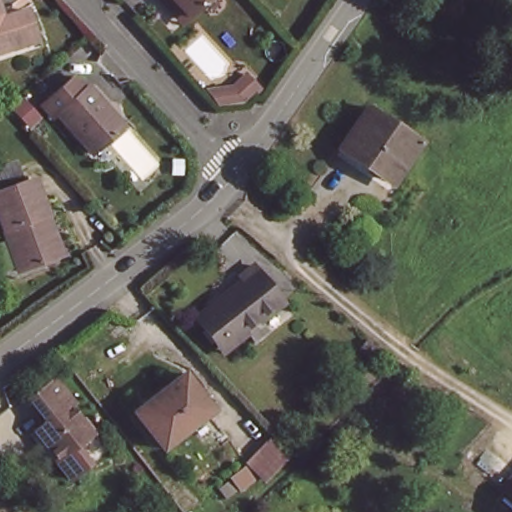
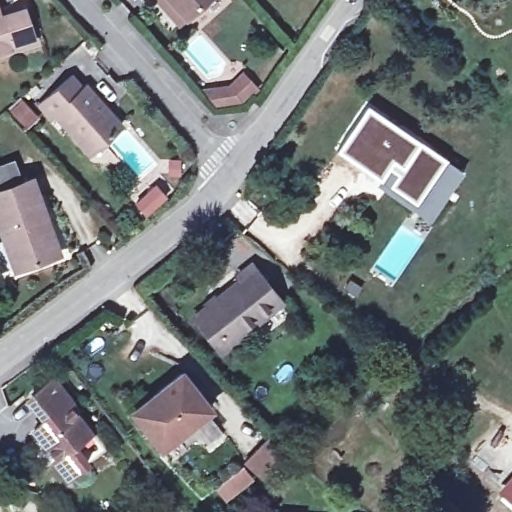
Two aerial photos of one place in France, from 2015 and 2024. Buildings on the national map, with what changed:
unchanged [(28,2),(40,39),(0,52),(0,0),(3,0),(6,9),(28,2)]
unchanged [(153,0),(201,0),(174,24),(153,0)]
unchanged [(90,153),(53,112),(39,102),(76,68),(88,79),(126,120),(90,153)]
unchanged [(239,106),(205,105),(203,84),(231,84),(243,69),(258,87),(239,106)]
unchanged [(23,128),(6,106),(20,94),(41,117),(23,128)]
unchanged [(417,142),(393,180),(339,147),(364,109),(417,142)]
new [(459,170),(432,216),(387,187),(393,180),(417,142),(459,170)]
unchanged [(0,223),(0,163),(14,156),(24,178),(38,173),(66,250),(20,269),(0,223)]
unchanged [(214,339),(194,314),(240,276),(235,270),(248,260),(279,296),(241,327),(245,332),(234,341),(223,350),(214,339)]
unchanged [(206,410),(158,447),(133,415),(181,378),(206,410)]
unchanged [(71,403),(67,406),(88,435),(53,461),(30,429),(46,417),(31,395),(54,379),(71,403)]
unchanged [(242,495),(229,481),(268,435),(289,455),(242,495)]
unchanged [(505,496),(512,488),(512,502),(505,496)]

